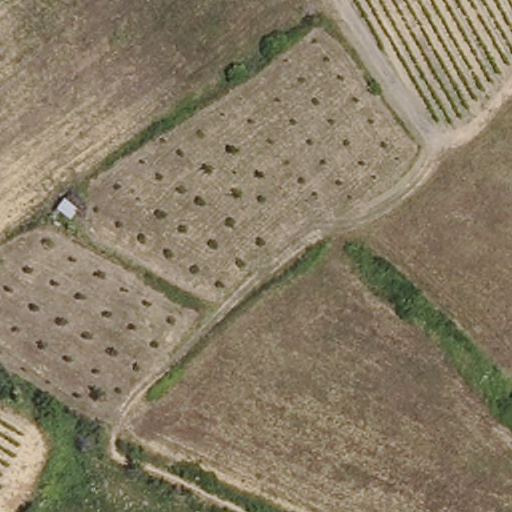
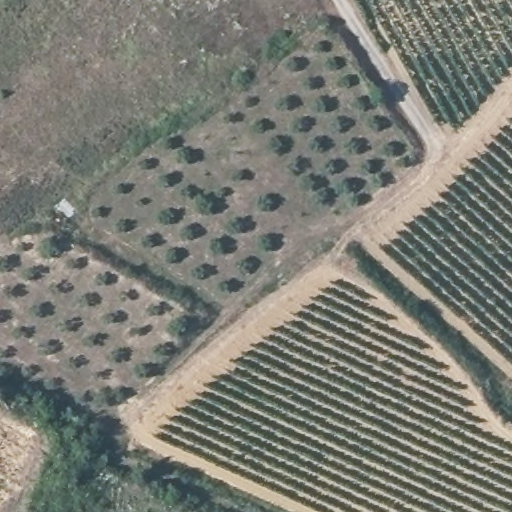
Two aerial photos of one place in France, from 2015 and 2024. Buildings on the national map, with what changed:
unchanged [(58,208),(73,224),(57,236),(44,219),(58,208)]

